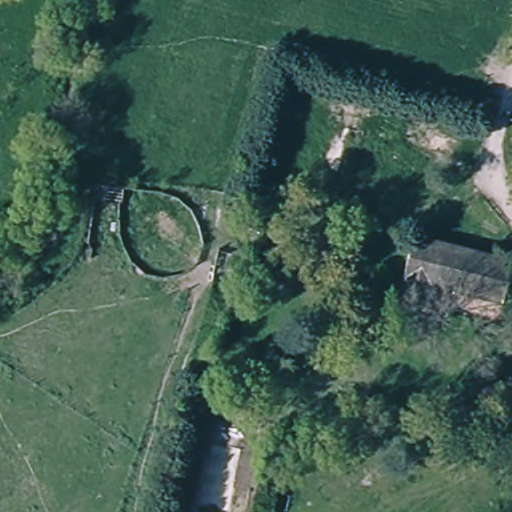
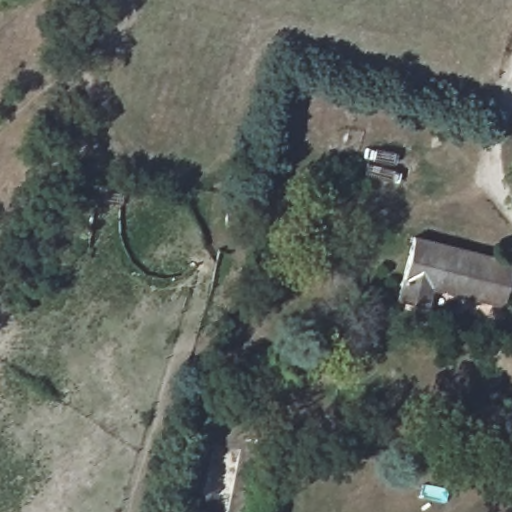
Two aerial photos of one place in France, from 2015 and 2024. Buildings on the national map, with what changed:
unchanged [(241,238),(229,228),(238,216),(249,226),(241,238)]
unchanged [(436,294),(431,314),(398,306),(416,241),(512,262),(512,283),(504,308),(436,294)]
unchanged [(199,388),(244,393),(240,420),(204,413),(199,388)]

